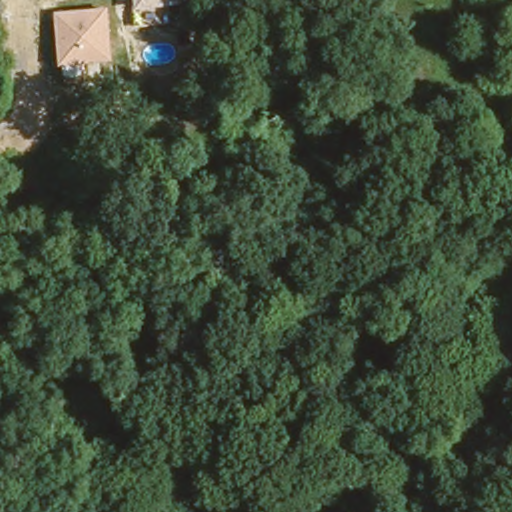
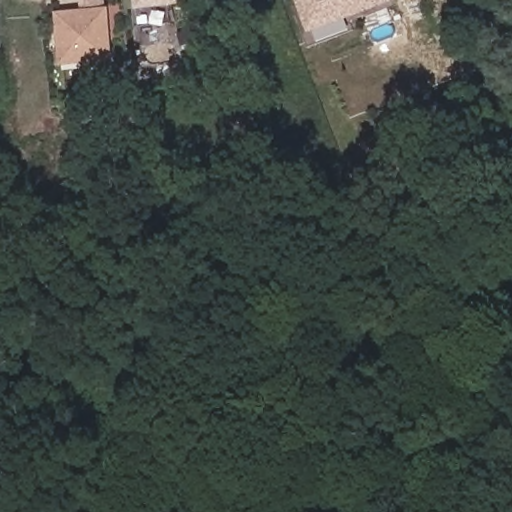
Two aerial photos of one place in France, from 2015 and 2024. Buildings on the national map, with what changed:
unchanged [(104,0),(106,9),(111,8),(116,63),(61,66),(56,11),(80,10),(79,0),(104,0)]
unchanged [(136,0),(186,0),(187,6),(137,11),(136,0)]
new [(295,0),(398,0),(307,34),(295,0)]

